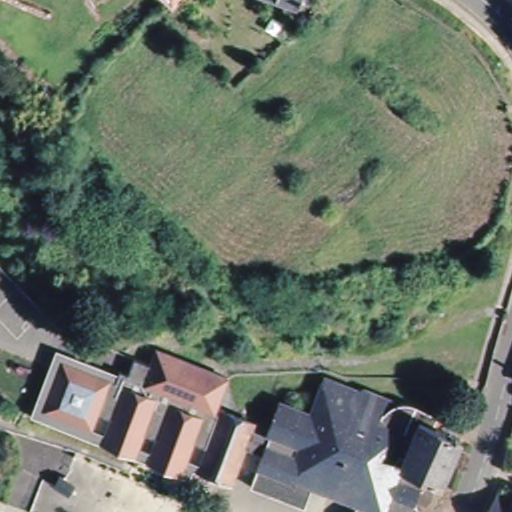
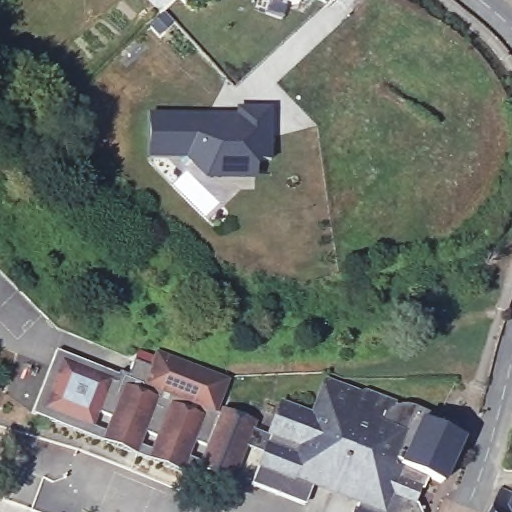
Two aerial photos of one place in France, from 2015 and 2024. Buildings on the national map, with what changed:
unchanged [(286,0),(300,0),(298,5),(286,0)]
unchanged [(307,0),(309,0),(308,1),(307,0)]
unchanged [(325,5),(315,0),(330,0),(326,4),(325,5)]
new [(208,115),(236,115),(237,107),(271,108),(270,139),(237,138),(237,125),(208,125),(208,115)]
new [(237,177),(206,176),(189,156),(150,156),(150,114),(208,115),(208,125),(237,125),(237,138),(270,139),(270,161),(255,161),(255,177),(237,177)]
unchanged [(55,351),(130,376),(134,360),(151,367),(155,351),(230,379),(220,408),(215,406),(192,467),(190,475),(102,441),(33,417),(55,351)]
unchanged [(416,512),(350,512),(353,502),(307,484),(305,491),(300,505),(246,484),(258,453),(241,446),(230,475),(227,481),(193,467),(195,461),(216,409),(250,422),(247,429),(263,435),(275,402),(307,415),(321,379),(355,392),(360,391),(388,402),(386,408),(391,406),(398,404),(405,404),(412,407),(435,417),(430,427),(457,440),(437,483),(422,478),(418,490),(412,505),(416,512)]
unchanged [(70,492),(55,482),(60,473),(75,482),(70,492)]
unchanged [(505,486),(512,489),(512,512),(492,512),(505,486)]

